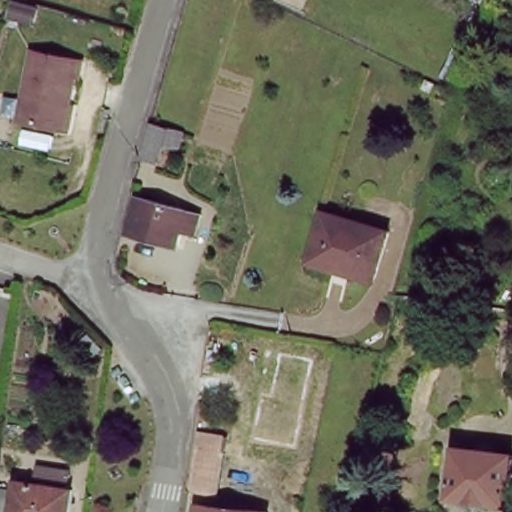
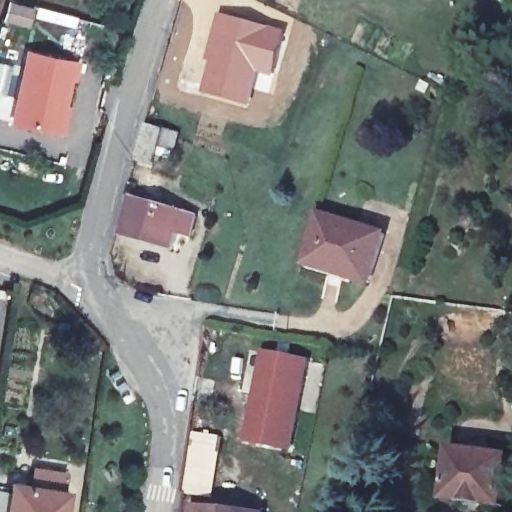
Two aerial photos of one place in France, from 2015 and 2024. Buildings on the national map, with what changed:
new [(208,55),(220,13),(286,30),(273,79),(261,75),(248,106),(202,95),(208,55)]
unchanged [(60,131),(56,130),(11,120),(26,51),(75,61),(72,77),(68,77),(62,104),(66,105),(60,131)]
unchanged [(174,140),(162,172),(148,168),(146,167),(158,136),(174,140)]
unchanged [(199,216),(193,237),(179,233),(174,252),(125,236),(137,197),(199,216)]
unchanged [(387,231),(371,280),(308,260),(323,210),(387,231)]
new [(263,349),(310,358),(292,451),(243,442),(263,349)]
unchanged [(192,500),(184,499),(196,437),(226,438),(216,503),(192,500)]
unchanged [(451,501),(456,452),(512,458),(512,471),(508,506),(451,501)]
unchanged [(71,512),(0,512),(0,494),(17,496),(19,484),(73,493),(71,512)]
unchanged [(216,503),(273,509),(273,512),(190,512),(192,500),(216,503)]

